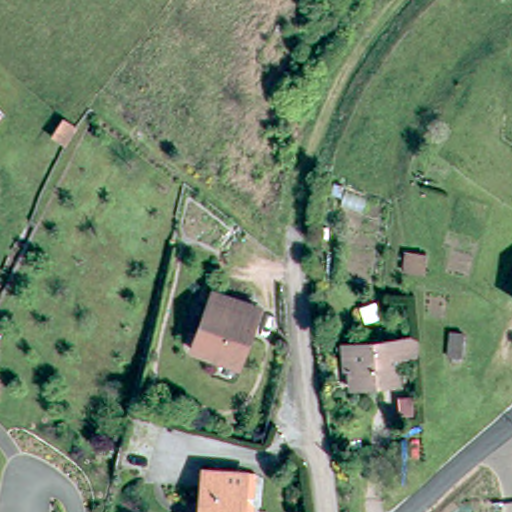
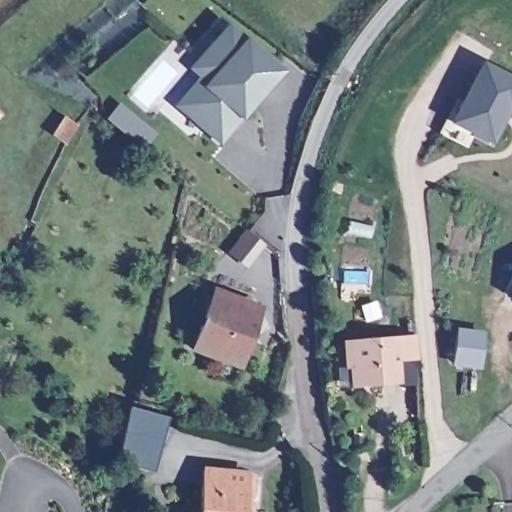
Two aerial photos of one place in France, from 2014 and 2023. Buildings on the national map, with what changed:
new [(243,39),(284,73),(242,120),(220,146),(172,105),(198,76),(187,67),(226,23),(243,39)]
new [(491,69),(512,80),(512,113),(497,145),(461,127),(480,136),(473,149),(445,135),(462,100),(472,105),(491,69)]
unchanged [(65,127),(56,145),(42,139),(51,121),(65,127)]
new [(245,233),(260,245),(244,266),(229,255),(245,233)]
unchanged [(251,329),(249,328),(237,360),(219,353),(217,358),(192,347),(213,290),(260,307),(251,329)]
unchanged [(466,331),(467,352),(454,353),(453,331),(466,331)]
unchanged [(342,341),(381,338),(387,337),(413,335),(414,355),(388,357),(390,379),(383,380),(343,383),(342,341)]
new [(155,473),(115,463),(128,405),(170,416),(155,473)]
unchanged [(245,478),(251,482),(246,500),(240,500),(238,502),(244,508),(245,510),(245,512),(193,512),(199,471),(245,478)]

